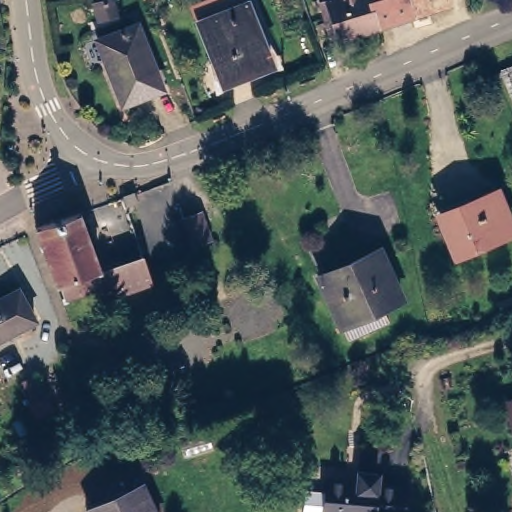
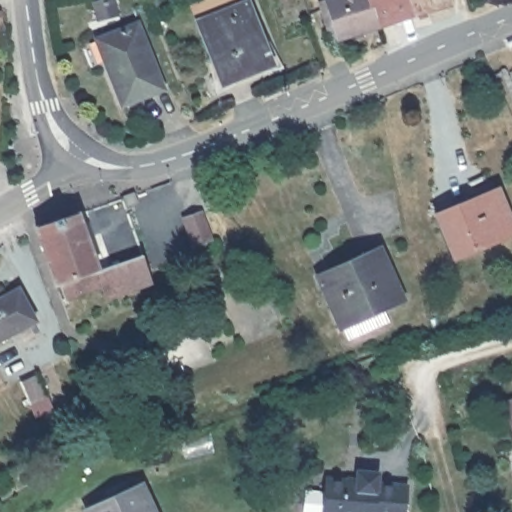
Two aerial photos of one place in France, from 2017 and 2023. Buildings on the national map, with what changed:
unchanged [(359,18),(333,25),(332,22),(317,26),(310,0),(359,0),(362,17),(359,18)]
unchanged [(362,29),(359,18),(362,17),(359,0),(400,0),(429,0),(413,4),(416,13),(362,29)]
unchanged [(247,11),(268,65),(217,83),(196,29),(247,11)]
unchanged [(137,24),(145,46),(142,47),(157,90),(120,105),(103,61),(107,60),(100,36),(137,24)]
unchanged [(442,210),(497,189),(512,224),(512,228),(460,249),(442,210)]
unchanged [(95,265),(55,282),(28,223),(68,206),(95,265)]
unchanged [(203,213),(214,232),(197,239),(186,215),(194,211),(203,213)]
unchanged [(135,247),(145,271),(105,289),(95,265),(135,247)]
unchanged [(375,249),(396,294),(337,322),(317,276),(375,249)]
unchanged [(32,318),(0,333),(0,295),(16,287),(32,318)]
unchanged [(43,385),(48,399),(36,404),(30,390),(43,385)]
unchanged [(509,397),(512,396),(512,406),(509,397)]
unchanged [(322,483),(322,478),(355,482),(357,468),(387,473),(387,482),(412,486),(411,512),(306,512),(307,482),(322,483)]
unchanged [(145,486),(153,512),(94,512),(92,503),(145,486)]

